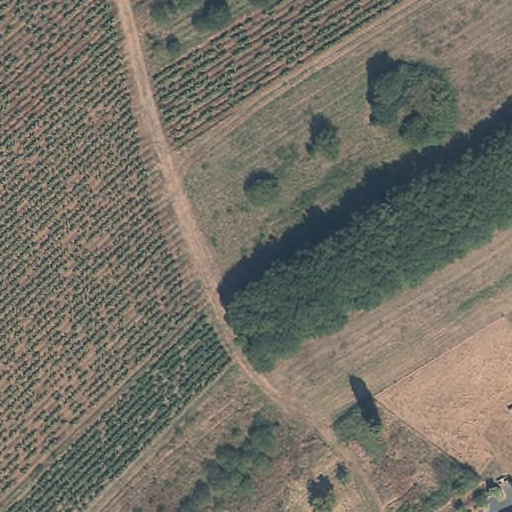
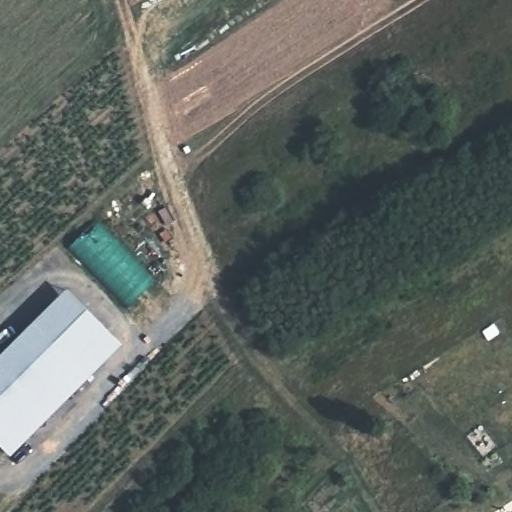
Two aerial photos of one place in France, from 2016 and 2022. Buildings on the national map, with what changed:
new [(121,344),(10,456),(0,446),(0,353),(65,289),(121,344)]

